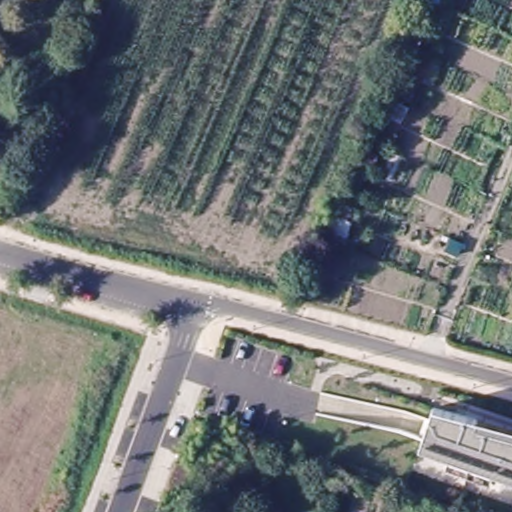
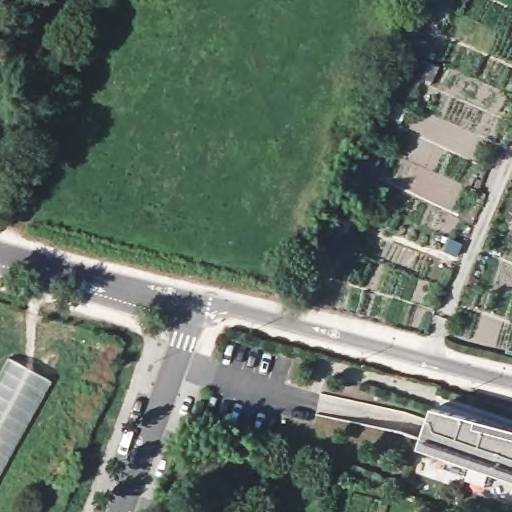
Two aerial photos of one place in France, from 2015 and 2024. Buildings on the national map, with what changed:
new [(14,345),(56,368),(0,474),(0,371),(14,345)]
unchanged [(470,432),(512,446),(512,483),(414,451),(428,411),(472,426),(470,432)]
unchanged [(217,454),(210,474),(194,469),(200,449),(217,454)]

